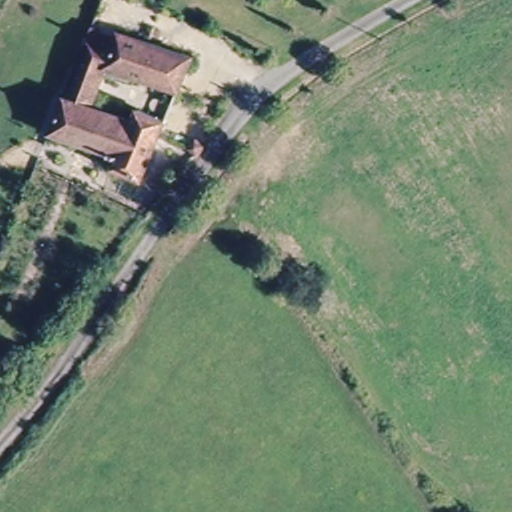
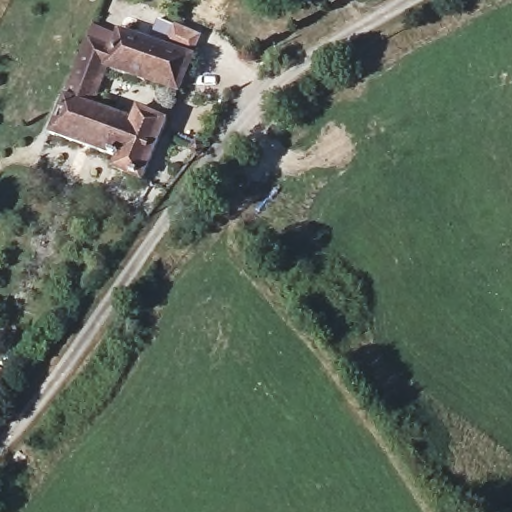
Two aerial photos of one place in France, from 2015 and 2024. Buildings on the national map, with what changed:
unchanged [(103,0),(127,0),(186,21),(202,25),(176,96),(105,73),(89,112),(129,125),(135,115),(163,126),(140,183),(109,172),(113,162),(48,136),(103,0)]

